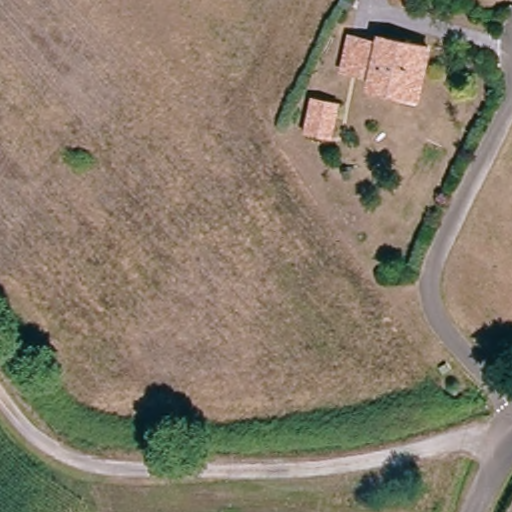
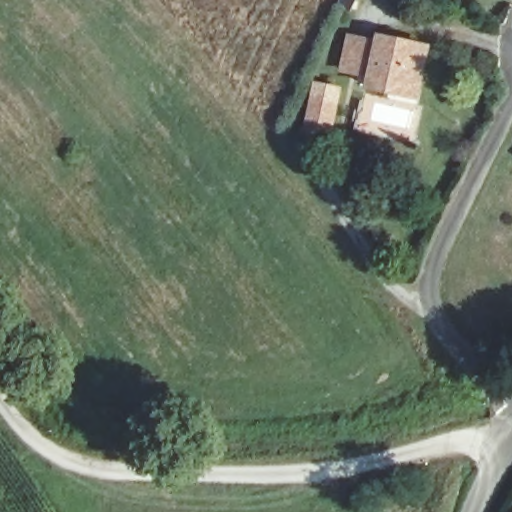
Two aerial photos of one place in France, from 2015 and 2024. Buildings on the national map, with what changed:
unchanged [(393,89),(374,85),(376,71),(383,38),(385,31),(428,42),(419,86),(417,94),(393,89)]
unchanged [(376,71),(347,65),(354,32),(383,38),(376,71)]
unchanged [(314,100),(334,105),(335,106),(328,136),(308,132),(314,100)]

